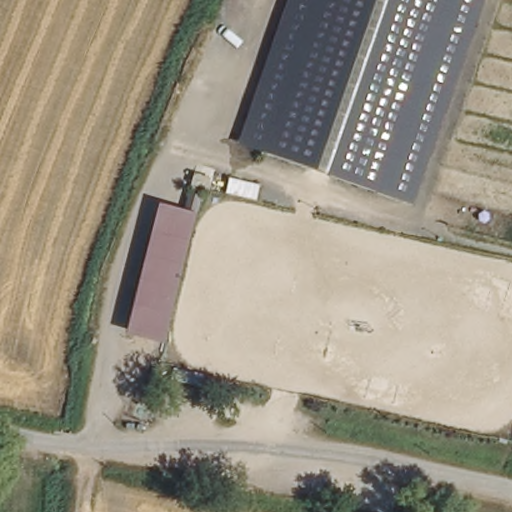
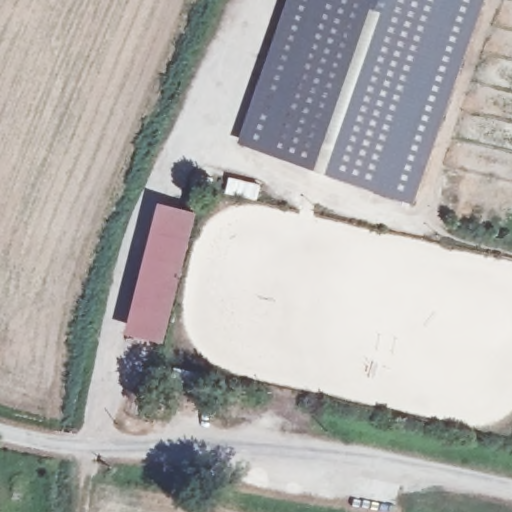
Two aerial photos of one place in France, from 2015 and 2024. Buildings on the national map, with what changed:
unchanged [(413,204),(240,143),(287,0),(484,0),(413,204)]
unchanged [(194,191),(207,194),(202,211),(190,208),(194,191)]
unchanged [(197,213),(167,343),(126,332),(160,204),(197,213)]

